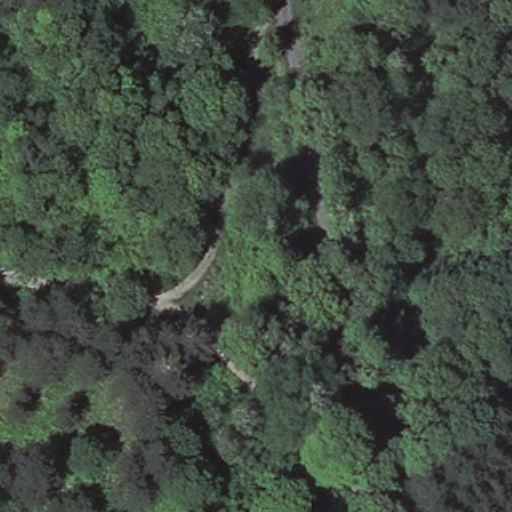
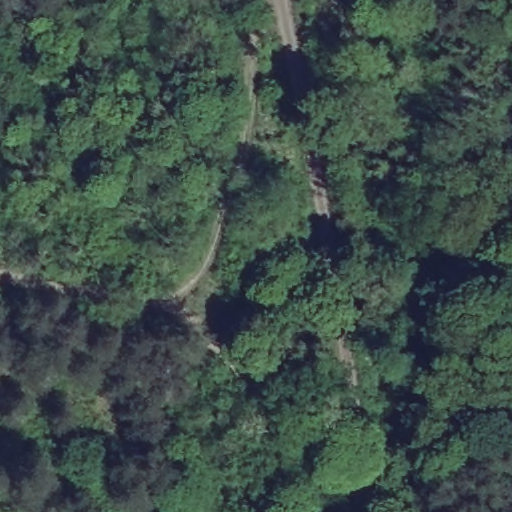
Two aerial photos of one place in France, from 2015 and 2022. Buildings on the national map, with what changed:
unchanged [(10,512),(0,512),(0,463),(10,463),(10,512)]

